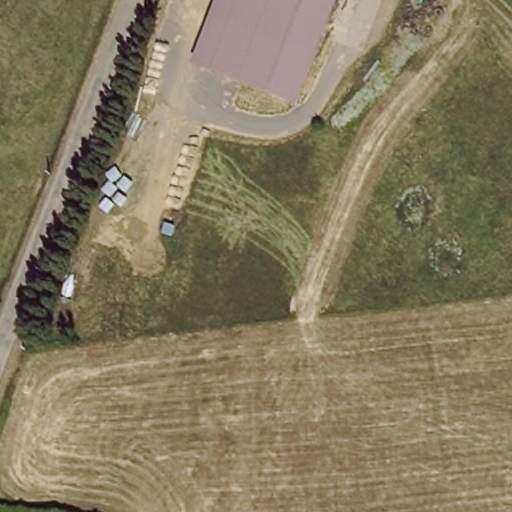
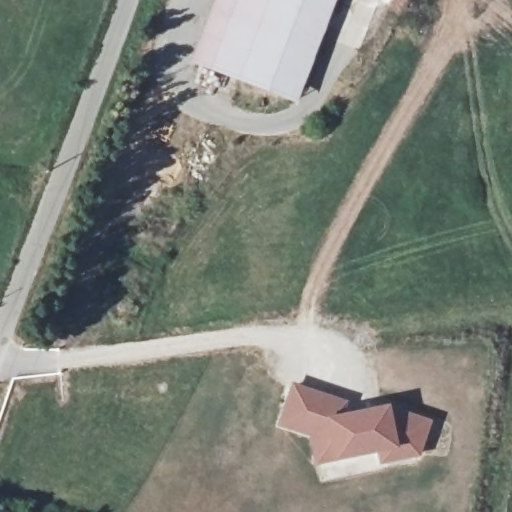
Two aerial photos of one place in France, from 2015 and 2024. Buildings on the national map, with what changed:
unchanged [(328,0),(302,96),(204,68),(222,0),(328,0)]
new [(380,450),(338,459),(319,463),(313,435),(282,424),(295,387),(345,404),(340,419),(388,409),(429,423),(418,455),(383,462),(380,450)]

